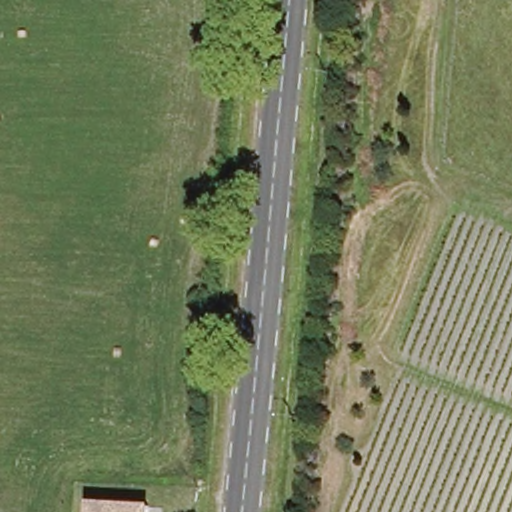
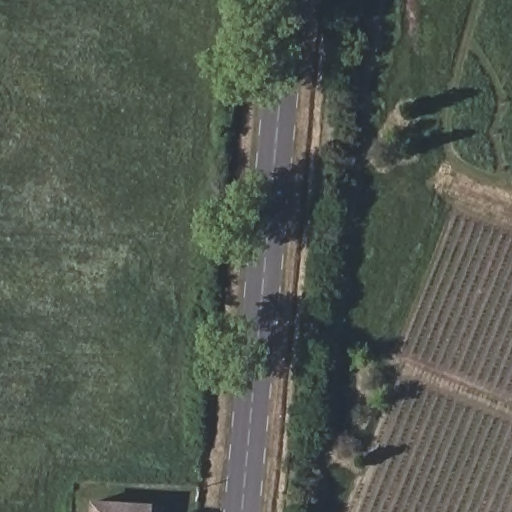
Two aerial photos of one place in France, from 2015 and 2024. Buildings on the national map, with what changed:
unchanged [(148,512),(90,512),(90,507),(149,510),(148,512)]

